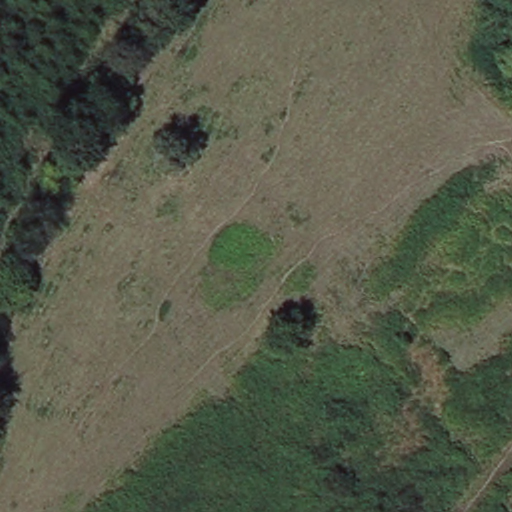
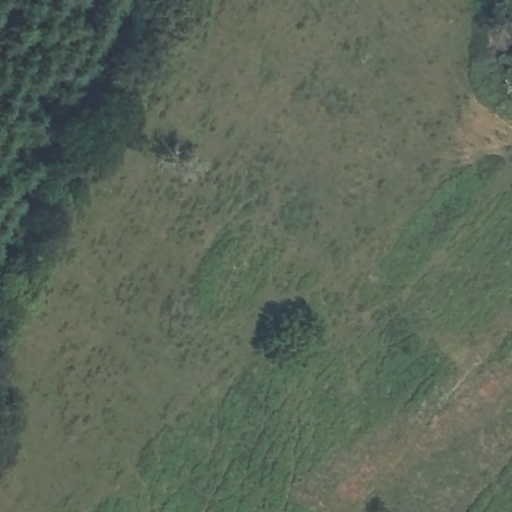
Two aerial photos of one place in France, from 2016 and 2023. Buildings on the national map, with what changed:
[]

